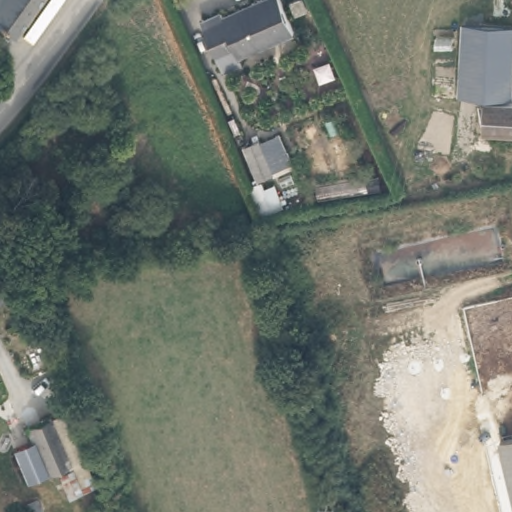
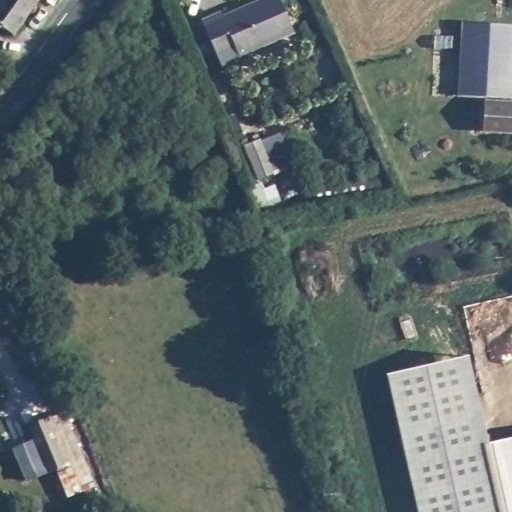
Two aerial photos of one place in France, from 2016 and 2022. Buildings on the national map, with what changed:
unchanged [(0,24),(0,0),(33,0),(13,32),(0,24)]
unchanged [(229,53),(218,57),(203,16),(224,8),(226,12),(260,0),(280,0),(294,33),(231,59),(229,53)]
unchanged [(511,33),(508,106),(512,106),(512,136),(481,135),(481,105),(456,104),(459,31),(511,33)]
unchanged [(284,132),(297,166),(256,184),(243,151),(284,132)]
unchanged [(247,224),(236,199),(251,192),(262,218),(247,224)]
new [(385,373),(468,354),(490,442),(492,451),(510,512),(417,512),(385,373)]
unchanged [(84,491),(66,500),(50,473),(27,483),(12,452),(33,442),(29,427),(49,419),(84,491)]
new [(512,445),(492,451),(490,442),(512,437),(512,445)]
unchanged [(512,445),(512,512),(510,512),(492,451),(512,445)]

